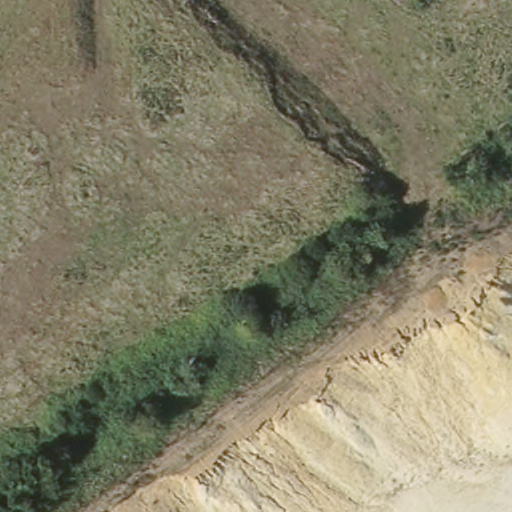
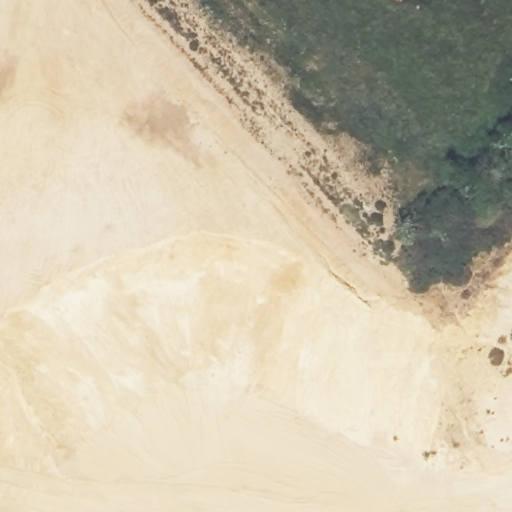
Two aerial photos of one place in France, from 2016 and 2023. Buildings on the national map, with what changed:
[]

